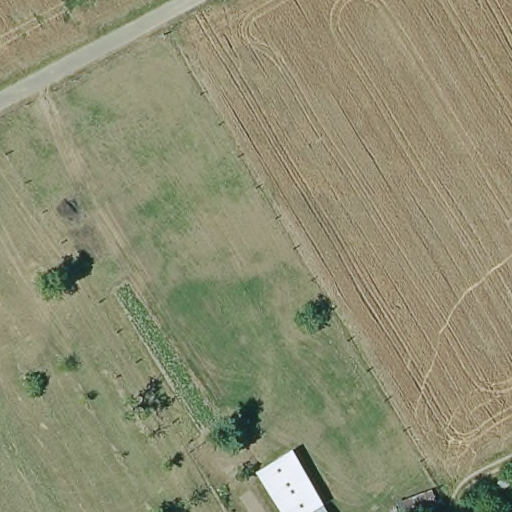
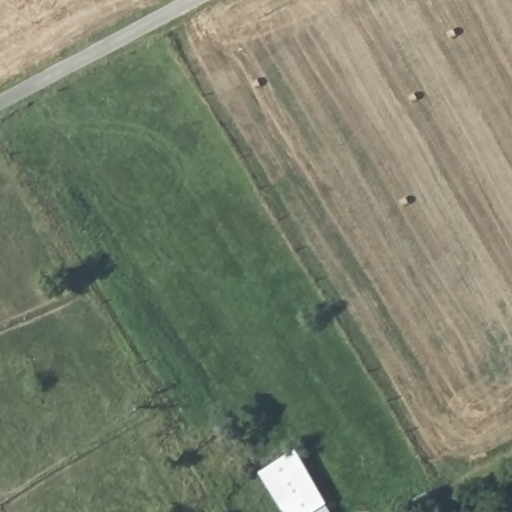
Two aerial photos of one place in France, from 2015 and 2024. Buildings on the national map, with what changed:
unchanged [(324,512),(279,512),(256,476),(297,450),(331,508),(324,512)]

